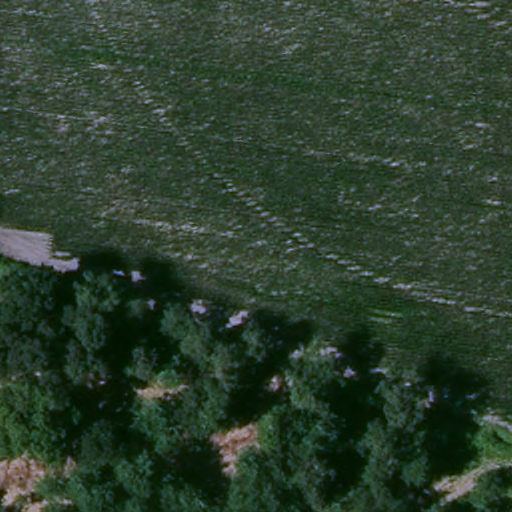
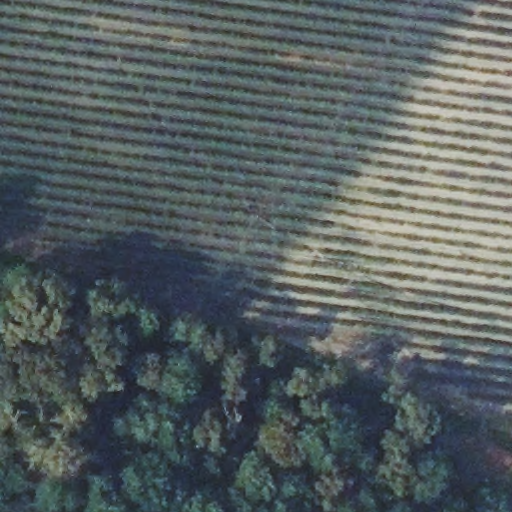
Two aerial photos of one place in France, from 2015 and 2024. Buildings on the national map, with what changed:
[]

